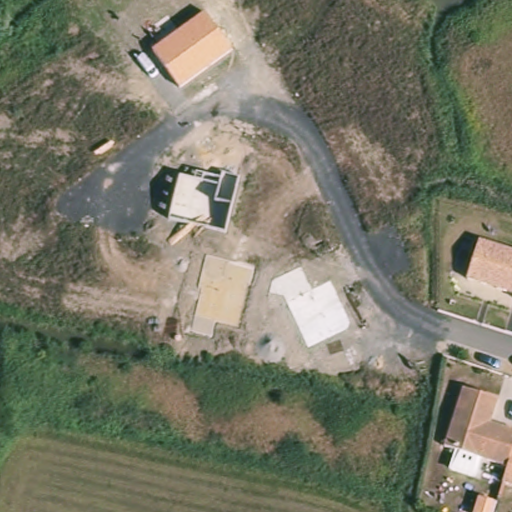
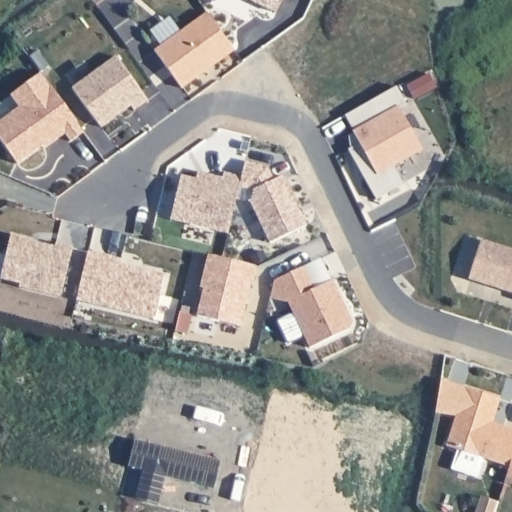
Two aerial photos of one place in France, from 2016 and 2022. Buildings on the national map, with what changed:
new [(276,10),(254,0),(280,0),(276,10)]
unchanged [(153,50),(206,13),(233,50),(181,89),(153,50)]
new [(114,57),(147,101),(133,111),(130,106),(100,129),(71,89),(114,57)]
new [(0,120),(17,107),(8,95),(41,72),(84,134),(70,144),(64,135),(43,150),(42,148),(17,165),(0,142),(0,120)]
new [(347,150),(357,144),(342,116),(397,87),(407,105),(399,109),(423,151),(392,167),(402,185),(375,199),(347,150)]
new [(245,161),(267,167),(273,179),(283,176),(307,226),(268,244),(249,203),(252,191),(239,188),(242,179),(245,161)]
unchanged [(227,233),(169,220),(181,177),(196,180),(197,174),(222,180),(224,174),(242,179),(227,233)]
new [(32,240),(31,242),(54,247),(54,244),(71,248),(59,297),(18,287),(19,284),(0,279),(0,275),(10,235),(32,240)]
unchanged [(512,248),(512,291),(467,278),(480,238),(512,248)]
new [(87,252),(120,260),(119,265),(162,275),(152,319),(75,300),(87,252)]
new [(202,288),(199,287),(207,255),(256,267),(251,286),(249,286),(239,327),(196,316),(202,288)]
new [(302,267),(312,290),(331,281),(351,323),(348,330),(308,349),(286,303),(267,303),(268,298),(272,281),(302,267)]
unchanged [(512,432),(512,450),(511,453),(507,468),(443,448),(462,391),(496,401),(488,425),(501,428),(512,432)]
unchanged [(502,483),(507,468),(511,453),(512,450),(512,486),(502,483)]

